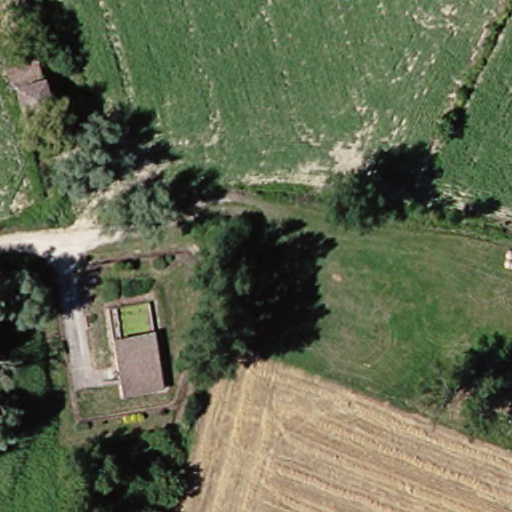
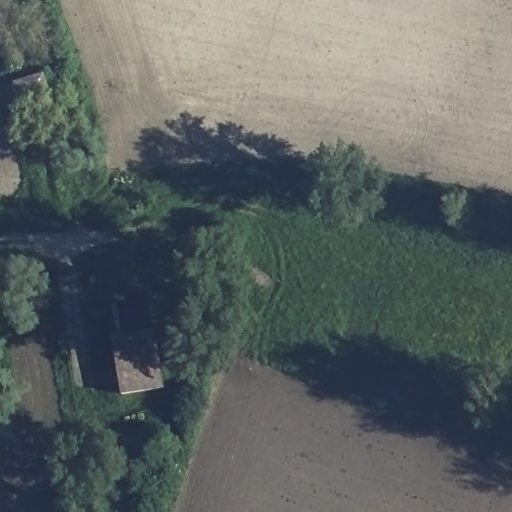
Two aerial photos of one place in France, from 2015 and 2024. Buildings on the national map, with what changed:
unchanged [(56,96),(29,104),(23,74),(50,65),(56,96)]
unchanged [(169,383),(131,388),(127,335),(164,327),(169,383)]

